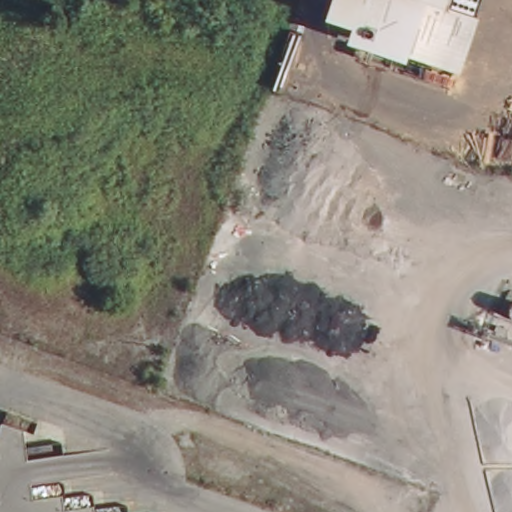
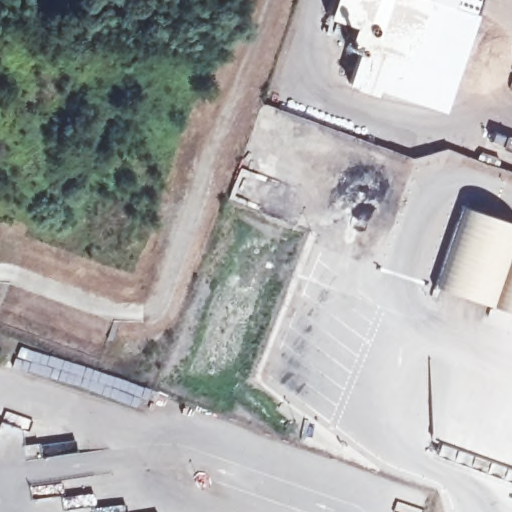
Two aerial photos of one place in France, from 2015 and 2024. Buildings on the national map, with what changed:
unchanged [(473,24),(457,71),(407,56),(405,59),(346,41),(351,25),(326,17),(333,0),(401,0),(473,24)]
unchanged [(480,13),(473,24),(401,0),(484,0),(480,13)]
new [(467,209),(512,225),(512,313),(440,289),(467,209)]

